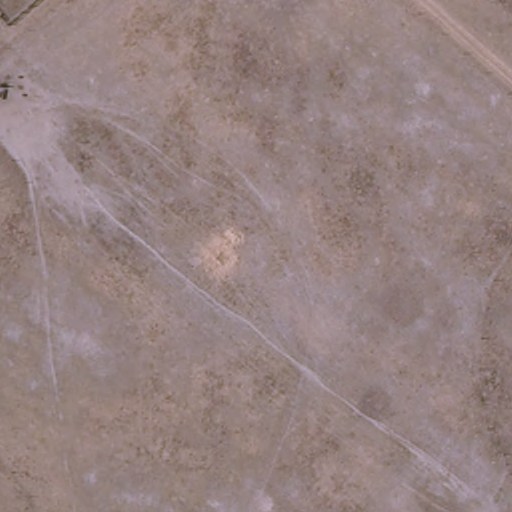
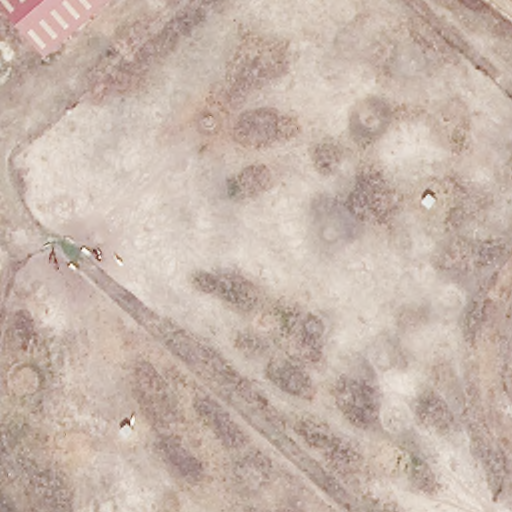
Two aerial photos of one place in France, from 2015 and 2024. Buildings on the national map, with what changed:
new [(0,5),(0,0),(117,0),(48,59),(0,5)]

